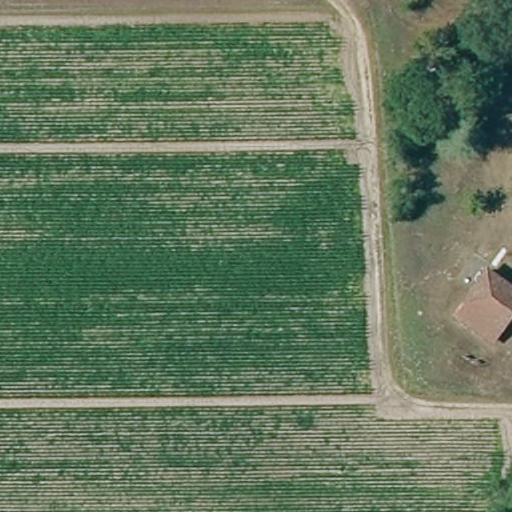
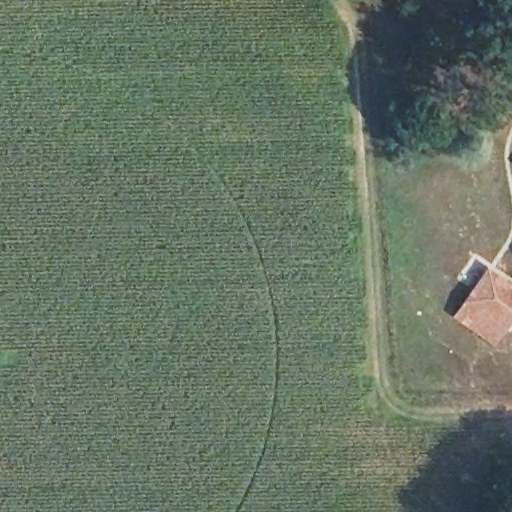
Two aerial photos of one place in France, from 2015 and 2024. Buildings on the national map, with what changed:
unchanged [(453,321),(489,263),(506,274),(498,287),(512,296),(512,317),(493,349),(453,321)]

